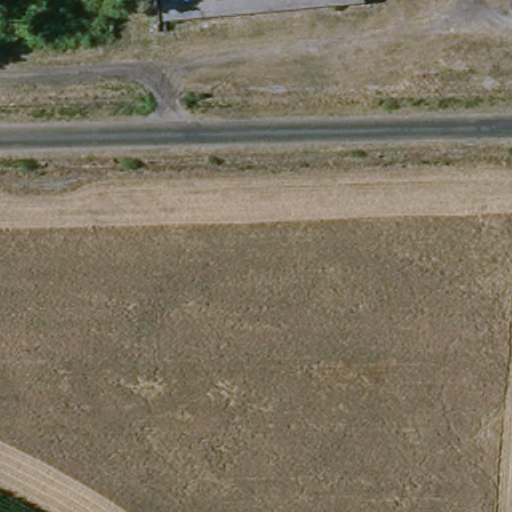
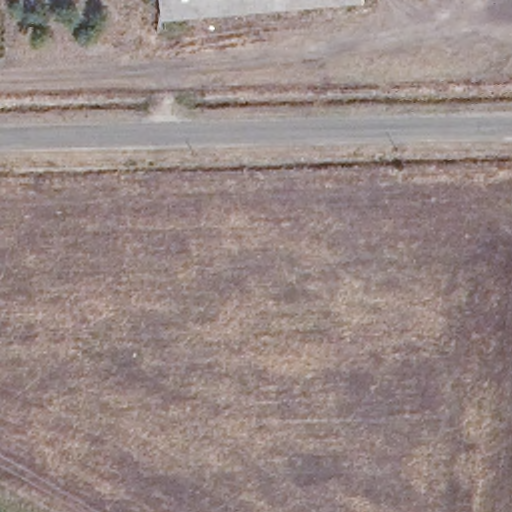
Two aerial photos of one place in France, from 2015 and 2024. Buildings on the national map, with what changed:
unchanged [(165,19),(164,0),(354,0),(165,19)]

